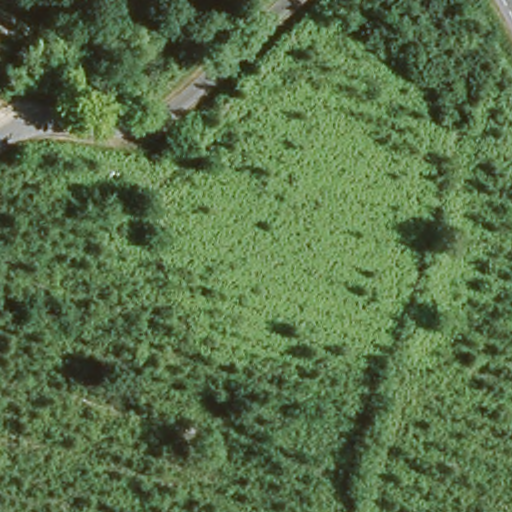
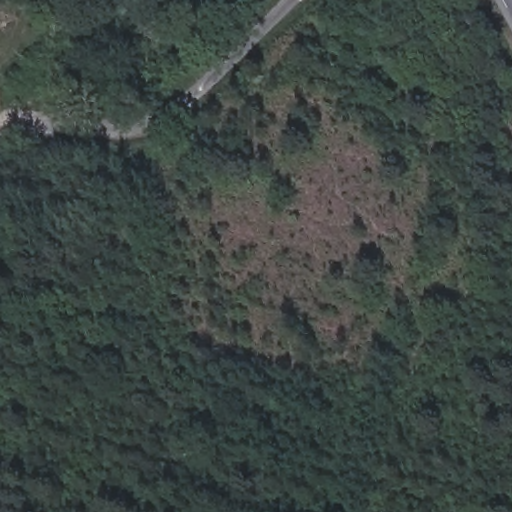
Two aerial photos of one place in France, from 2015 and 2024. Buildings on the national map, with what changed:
[]

